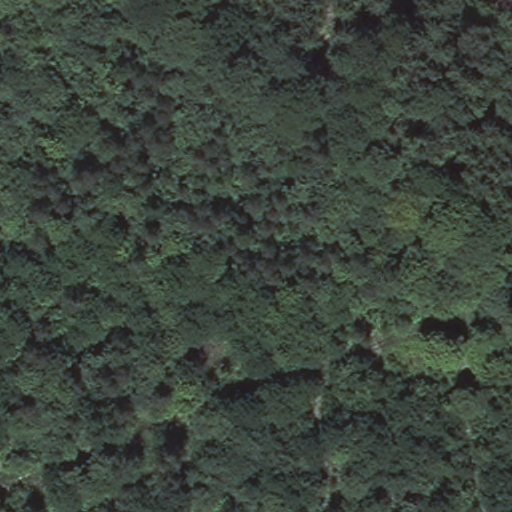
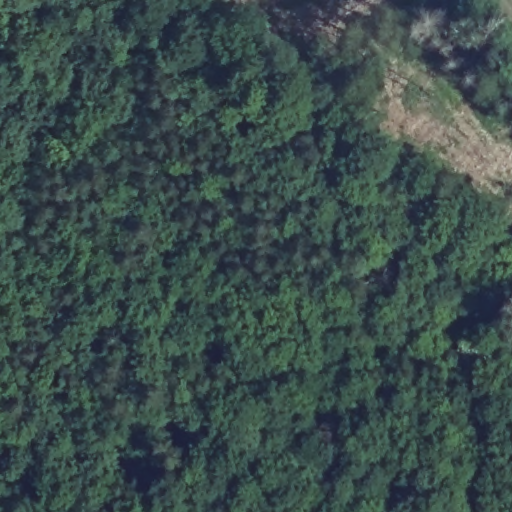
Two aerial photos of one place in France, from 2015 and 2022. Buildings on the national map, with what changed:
unchanged [(442,35),(454,25),(463,37),(452,46),(442,35)]

